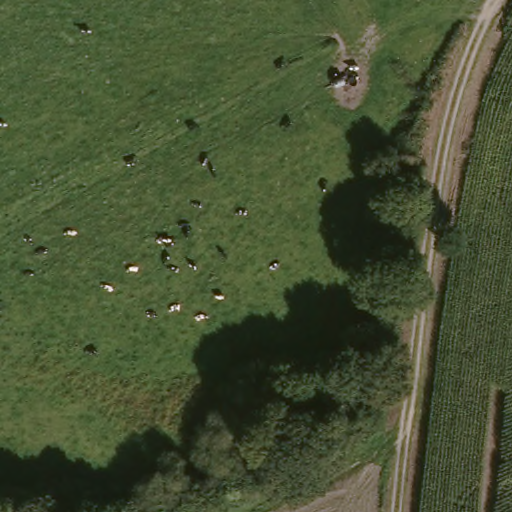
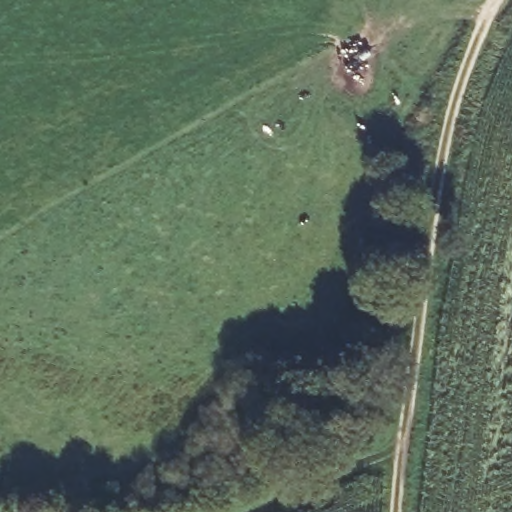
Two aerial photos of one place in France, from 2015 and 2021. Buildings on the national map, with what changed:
[]

